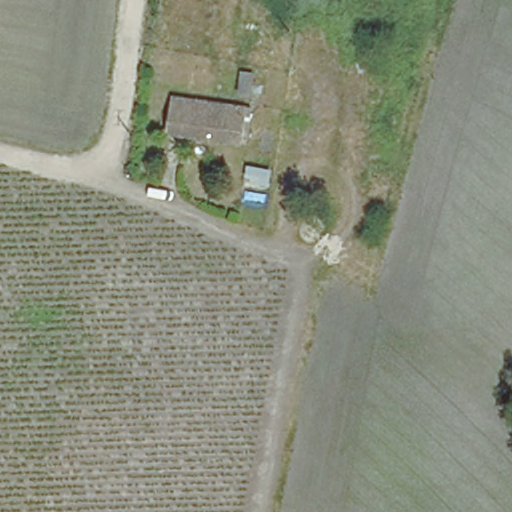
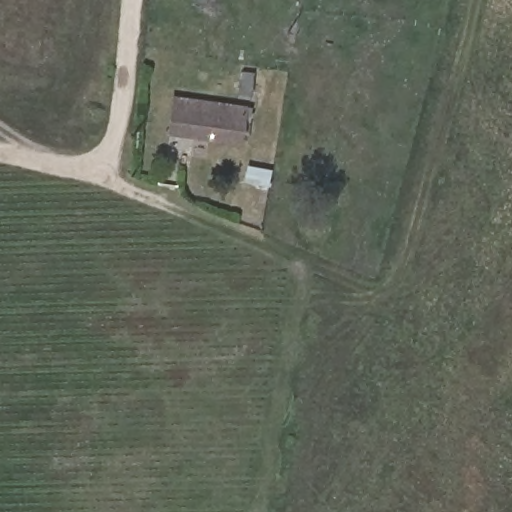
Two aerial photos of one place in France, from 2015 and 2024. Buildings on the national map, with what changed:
unchanged [(255,76),(252,92),(239,91),(241,73),(255,76)]
unchanged [(250,108),(246,139),(242,139),(242,143),(169,132),(174,96),(250,108)]
unchanged [(245,182),(248,167),(273,171),(273,176),(271,186),(245,182)]

